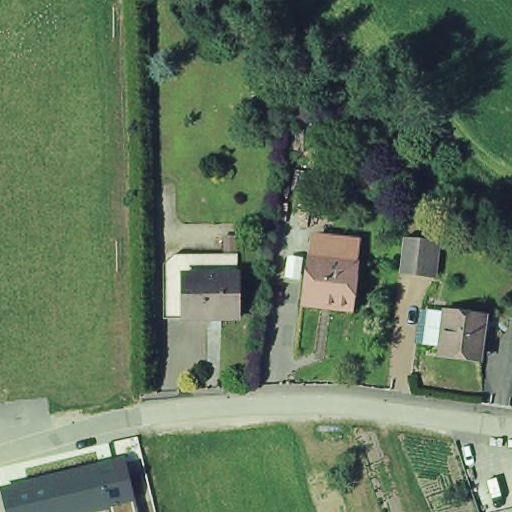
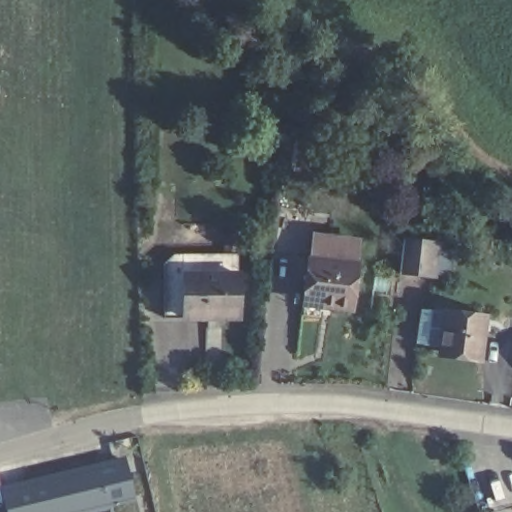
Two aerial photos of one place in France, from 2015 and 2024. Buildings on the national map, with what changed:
unchanged [(173,326),(172,242),(181,230),(232,230),(232,211),(244,211),(245,263),(192,264),(193,325),(173,326)]
unchanged [(404,272),(407,239),(440,242),(437,276),(404,272)]
unchanged [(309,276),(312,256),(361,265),(357,285),(349,331),(327,327),(300,323),(301,317),(309,276)]
unchanged [(193,325),(192,264),(245,263),(245,325),(193,325)]
unchanged [(434,360),(435,353),(440,317),(482,322),(475,362),(475,366),(434,360)]
unchanged [(110,510),(101,512),(5,512),(0,492),(0,486),(125,455),(139,512),(110,512),(110,510)]

